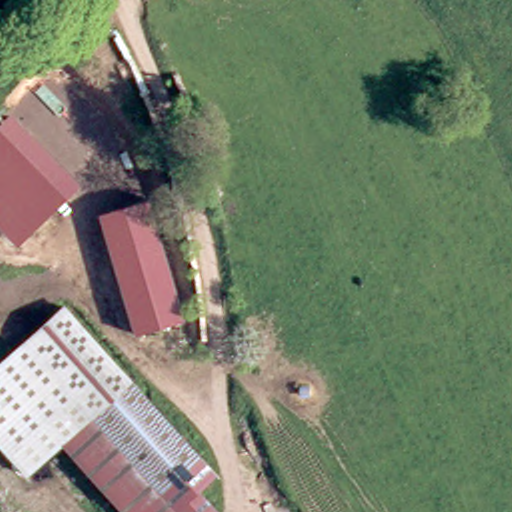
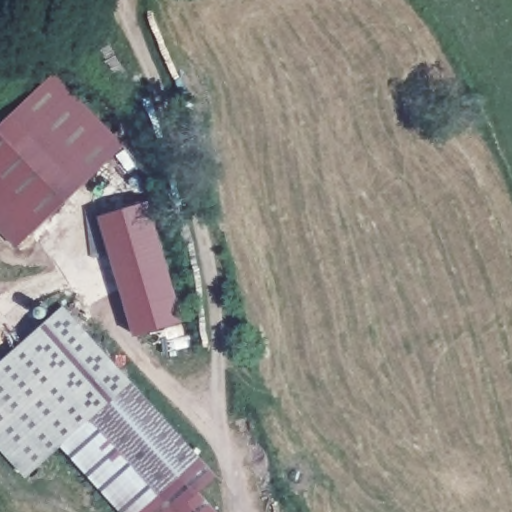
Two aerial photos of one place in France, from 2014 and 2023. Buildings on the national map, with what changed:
new [(55,75),(123,145),(81,186),(14,116),(55,75)]
unchanged [(14,116),(83,188),(70,201),(0,129),(14,116)]
unchanged [(0,129),(70,201),(35,235),(0,200),(0,129)]
unchanged [(21,248),(0,226),(0,200),(35,235),(21,248)]
unchanged [(151,202),(186,320),(135,335),(99,217),(151,202)]
unchanged [(66,309),(126,375),(58,434),(0,369),(25,346),(66,309)]
unchanged [(58,434),(66,444),(29,477),(0,444),(0,369),(58,434)]
unchanged [(126,375),(133,384),(200,459),(188,470),(165,492),(137,512),(127,512),(66,444),(58,434),(126,375)]
unchanged [(217,478),(202,492),(219,512),(184,512),(165,492),(200,459),(217,478)]
unchanged [(184,512),(137,512),(165,492),(184,512)]

